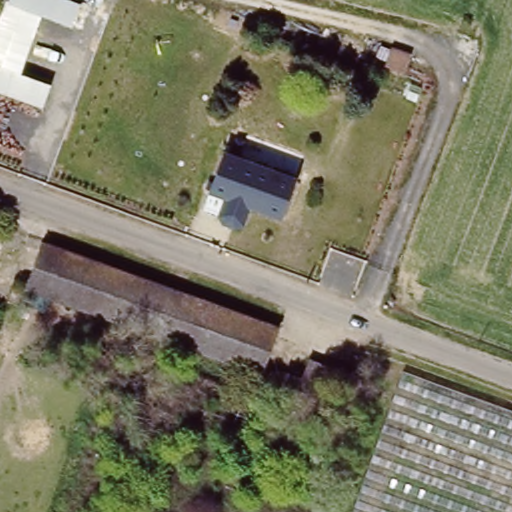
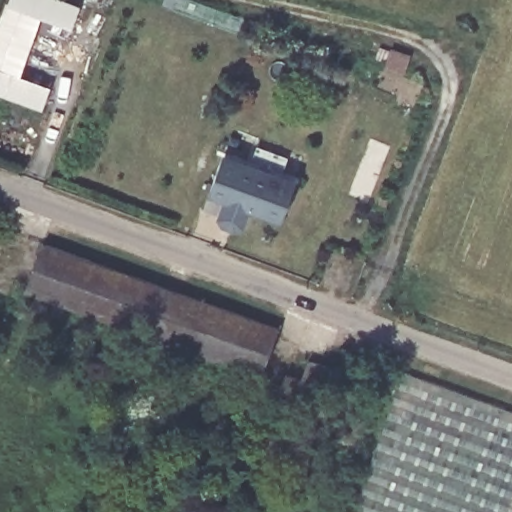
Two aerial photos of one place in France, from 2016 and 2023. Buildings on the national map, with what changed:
unchanged [(9,0),(71,0),(80,4),(72,28),(42,17),(21,74),(51,85),(43,109),(0,93),(0,25),(9,0)]
unchanged [(213,189),(227,151),(300,181),(285,218),(213,189)]
unchanged [(262,374),(27,288),(44,241),(279,325),(262,374)]
unchanged [(512,512),(351,512),(405,365),(512,400),(512,512)]
unchanged [(325,415),(278,398),(287,374),(335,391),(325,415)]

